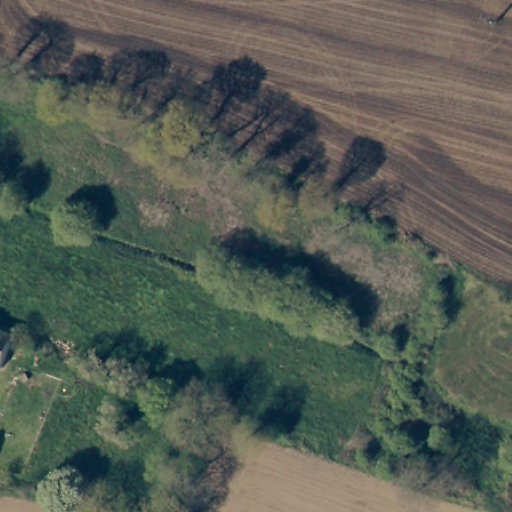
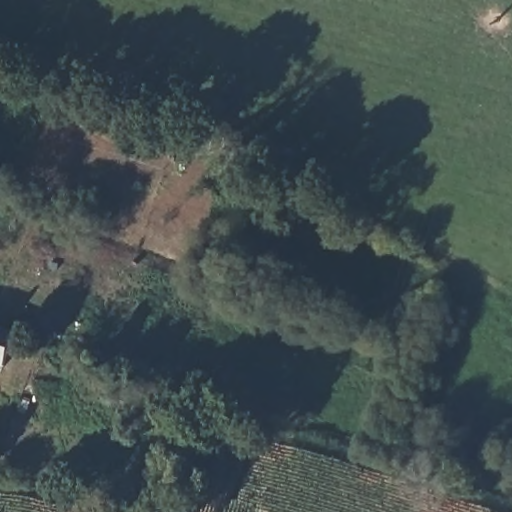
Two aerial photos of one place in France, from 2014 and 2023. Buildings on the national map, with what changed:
unchanged [(0,337),(1,337),(5,325),(15,328),(13,333),(11,338),(15,340),(5,369),(0,368),(0,337)]

